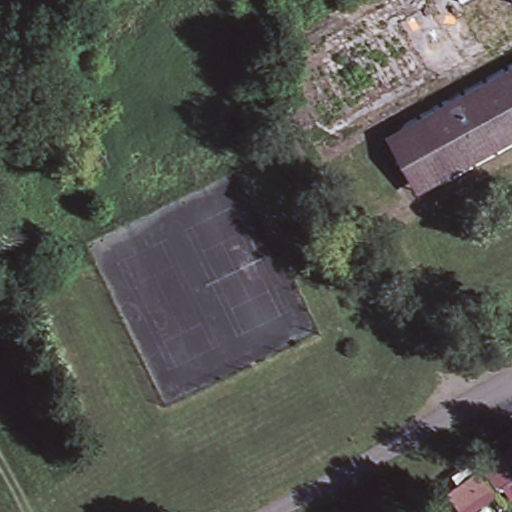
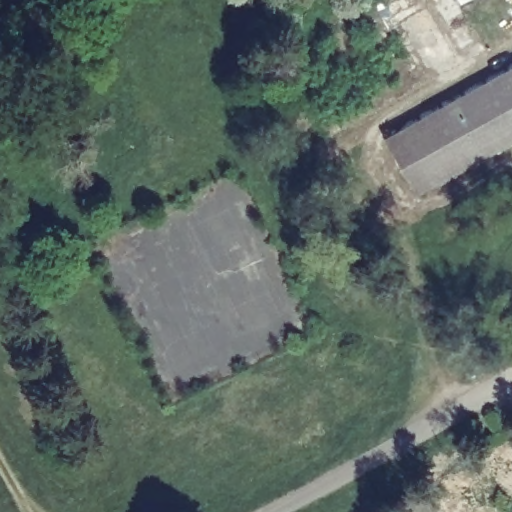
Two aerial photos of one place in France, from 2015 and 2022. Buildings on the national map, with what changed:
unchanged [(436,186),(427,186),(418,183),(411,179),(402,169),(400,165),(397,156),(397,148),(398,141),(400,137),(402,132),(409,124),(512,67),(512,148),(445,183),(436,186)]
unchanged [(438,493),(475,470),(512,449),(512,481),(464,512),(448,512),(438,493)]

